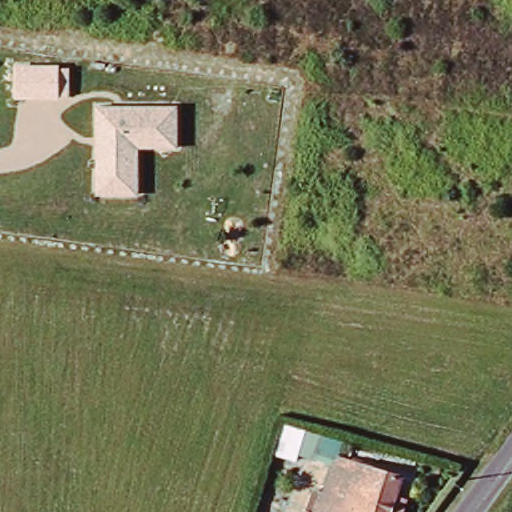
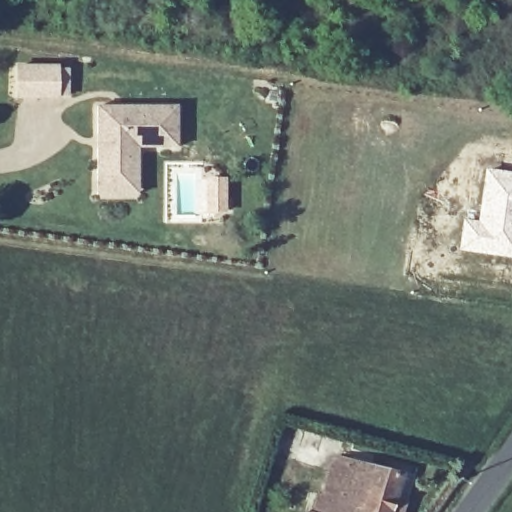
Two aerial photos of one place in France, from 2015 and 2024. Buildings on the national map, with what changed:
new [(61,65),(61,96),(19,96),(19,65),(61,65)]
unchanged [(178,106),(178,146),(139,146),(139,193),(96,193),(99,106),(178,106)]
new [(463,217),(476,220),(484,168),(512,171),(512,259),(457,251),(463,217)]
unchanged [(335,505),(348,462),(400,477),(390,512),(334,512),(335,505)]
unchanged [(304,511),(308,512),(304,512),(304,511)]

